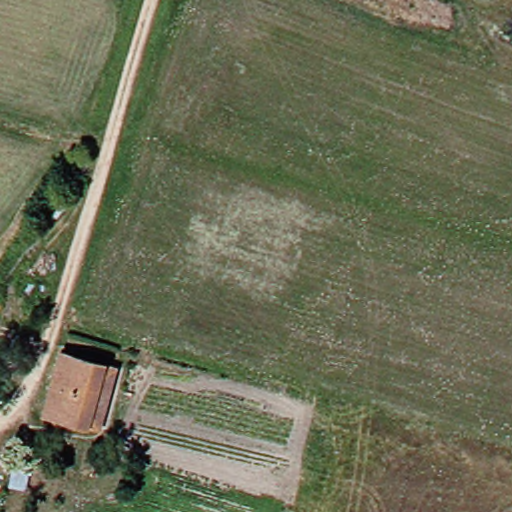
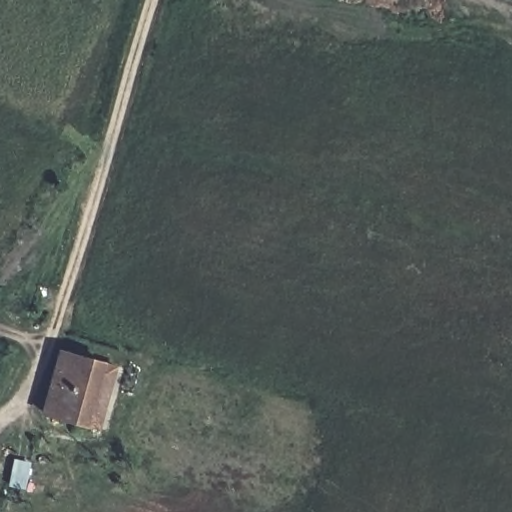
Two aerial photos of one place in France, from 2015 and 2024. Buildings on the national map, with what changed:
unchanged [(101,425),(89,422),(49,412),(63,345),(105,355),(117,358),(101,425)]

